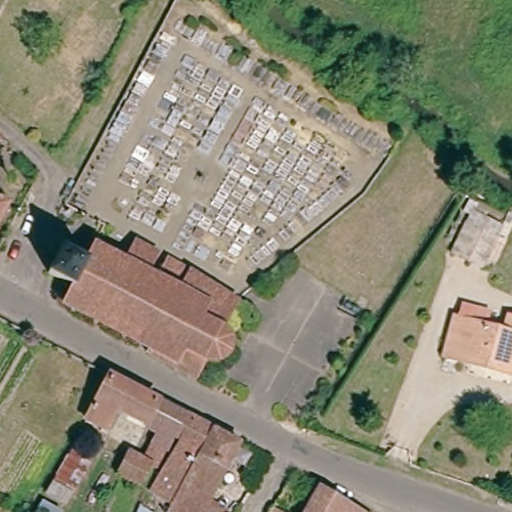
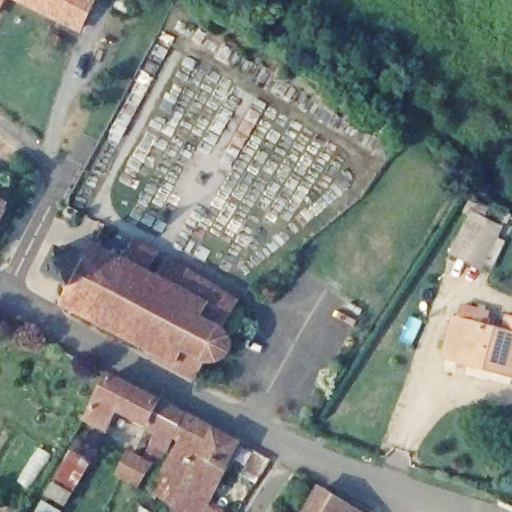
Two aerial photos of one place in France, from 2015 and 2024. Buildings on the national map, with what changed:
new [(80,35),(10,0),(96,0),(80,35)]
unchanged [(0,218),(0,194),(9,199),(0,218)]
unchanged [(500,227),(483,256),(454,238),(471,210),(500,227)]
unchanged [(153,353),(152,355),(149,354),(150,350),(128,337),(126,340),(121,338),(122,335),(100,323),(98,326),(94,324),(96,321),(76,310),(74,313),(70,311),(71,308),(61,303),(71,285),(51,272),(65,248),(86,259),(95,243),(127,260),(139,240),(161,252),(155,263),(164,270),(172,257),(242,295),(228,323),(234,327),(236,331),(236,335),(234,343),(232,351),(228,356),(223,360),(219,362),(215,361),(208,362),(200,379),(153,353)]
unchanged [(489,313),(487,328),(512,335),(512,377),(445,361),(454,321),(459,322),(462,308),(489,313)]
unchanged [(187,414),(177,435),(169,451),(153,443),(159,430),(95,398),(109,374),(187,414)]
unchanged [(177,503),(154,491),(181,437),(177,435),(187,414),(242,441),(208,505),(220,512),(175,512),(173,511),(177,503)]
unchanged [(95,461),(64,506),(46,495),(69,447),(95,461)]
unchanged [(130,455),(153,466),(143,488),(120,476),(130,455)]
unchanged [(356,512),(302,512),(317,488),(356,512)]
unchanged [(263,512),(265,508),(271,512),(263,512)]

